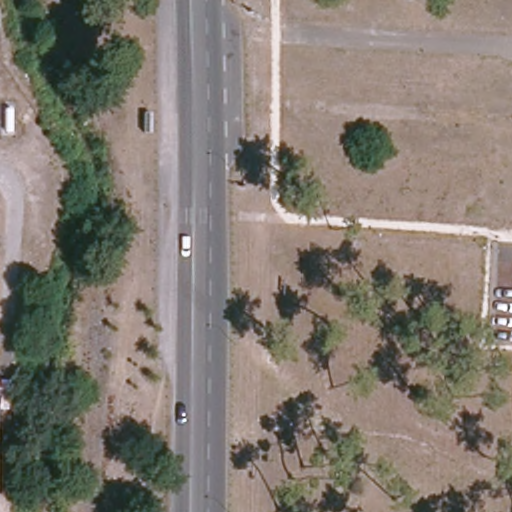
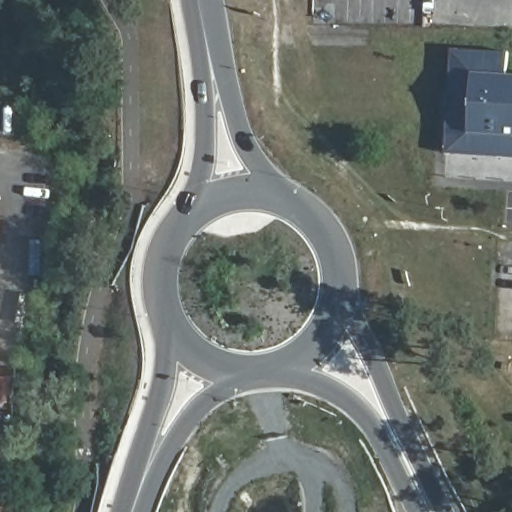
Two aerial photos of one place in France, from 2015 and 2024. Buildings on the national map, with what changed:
new [(451,49),(508,51),(508,74),(512,74),(512,158),(447,154),(451,49)]

